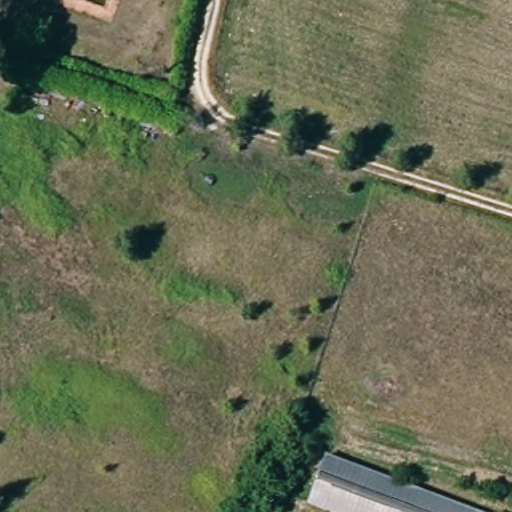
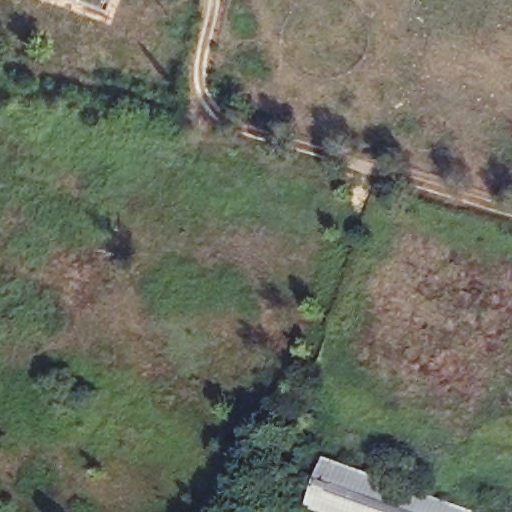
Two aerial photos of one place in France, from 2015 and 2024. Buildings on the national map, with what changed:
unchanged [(478,512),(326,512),(313,507),(332,457),(478,512)]

